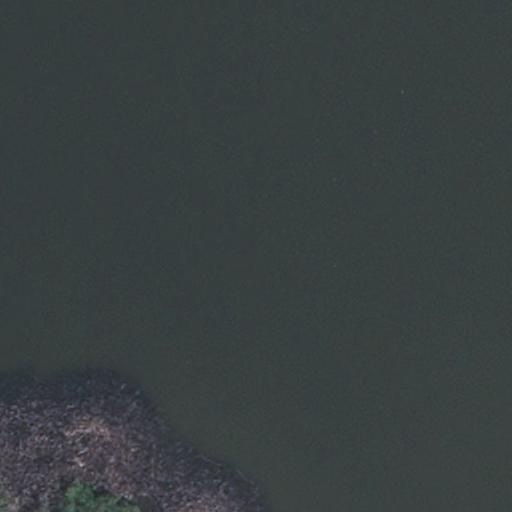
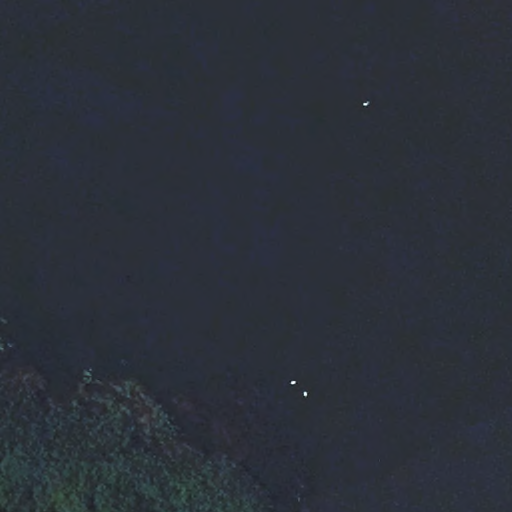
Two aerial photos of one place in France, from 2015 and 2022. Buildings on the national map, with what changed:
[]

